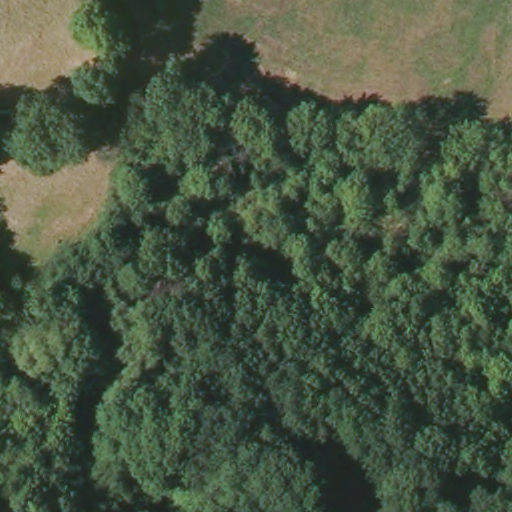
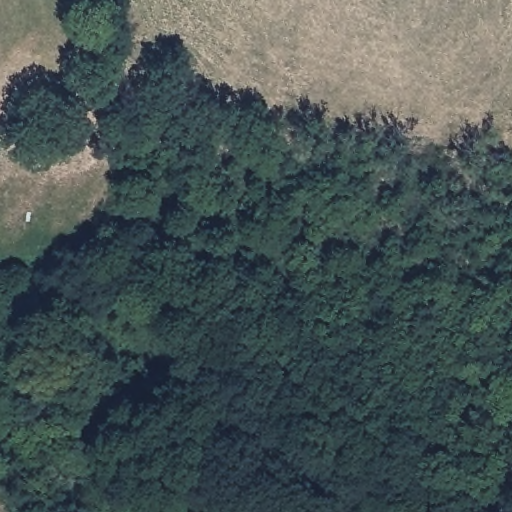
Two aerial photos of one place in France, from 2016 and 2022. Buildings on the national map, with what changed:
unchanged [(0,122),(0,107),(14,106),(10,120),(0,122)]

